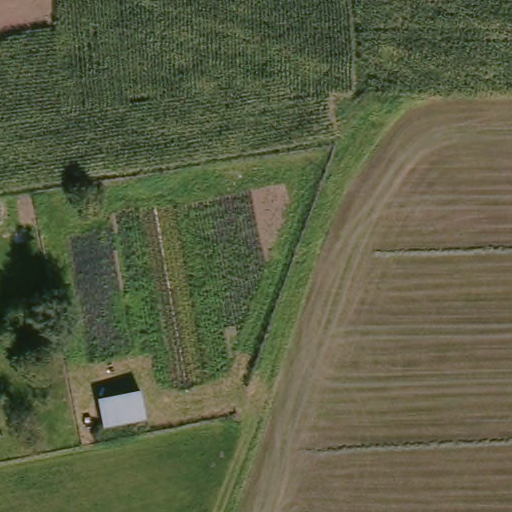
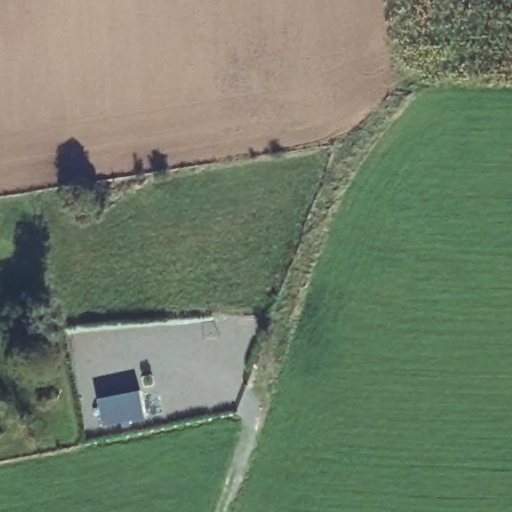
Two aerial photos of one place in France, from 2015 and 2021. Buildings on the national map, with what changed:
unchanged [(107,396),(150,388),(155,417),(112,424),(107,396)]

